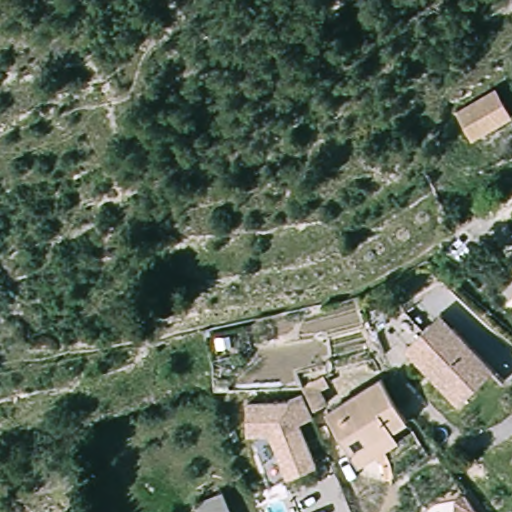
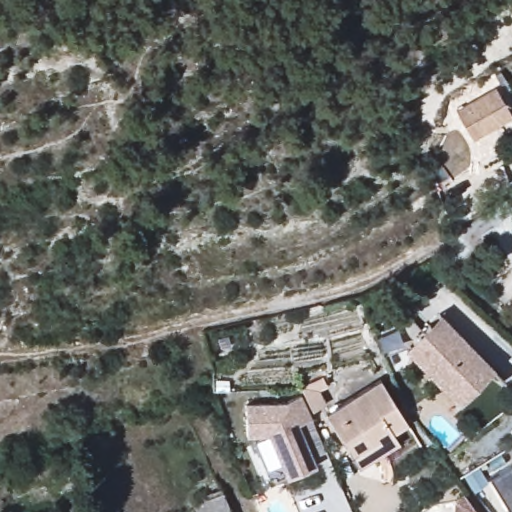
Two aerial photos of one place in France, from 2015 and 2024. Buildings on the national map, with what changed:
unchanged [(472,145),(459,119),(495,94),(510,118),(472,145)]
unchanged [(502,375),(467,413),(407,353),(443,319),(502,375)]
unchanged [(349,462),(344,447),(328,404),(390,380),(405,424),(410,436),(349,462)]
unchanged [(282,482),(266,438),(245,438),(245,406),(286,402),(312,391),(321,411),(303,423),(319,466),(282,482)]
new [(509,510),(490,479),(512,465),(512,508),(509,510)]
unchanged [(229,512),(194,512),(191,503),(220,491),(229,512)]

